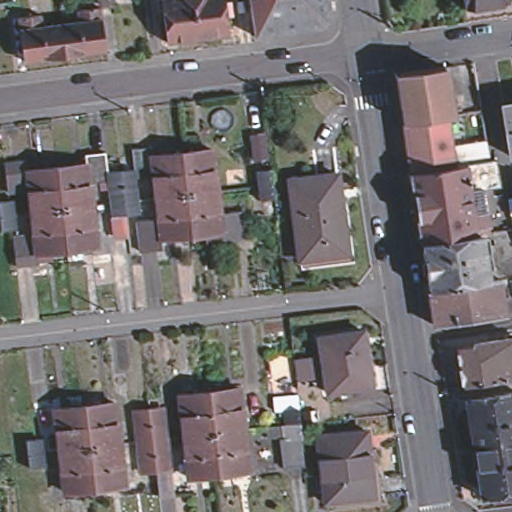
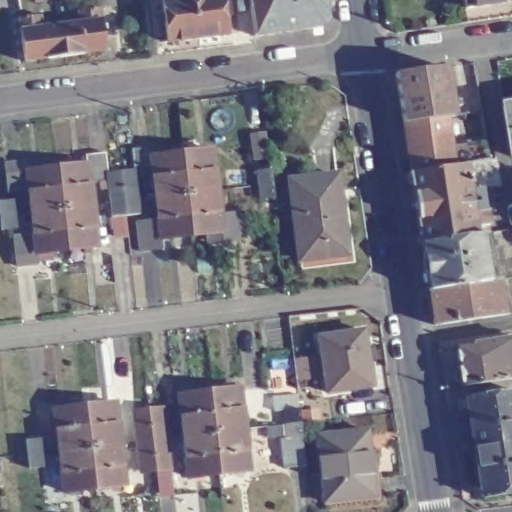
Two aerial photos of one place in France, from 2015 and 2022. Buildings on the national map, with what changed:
unchanged [(93,7),(92,0),(108,0),(108,5),(93,7)]
unchanged [(167,46),(162,0),(166,0),(223,0),(227,38),(167,46)]
unchanged [(320,32),(253,41),(247,0),(323,0),(327,25),(320,32)]
unchanged [(459,0),(512,0),(512,6),(505,7),(485,10),(485,12),(462,16),(459,0)]
unchanged [(19,69),(15,38),(13,25),(35,22),(37,35),(74,30),(73,17),(95,15),(97,27),(100,59),(19,69)]
unchanged [(452,104),(458,103),(460,109),(453,110),(455,119),(449,119),(405,125),(397,76),(446,69),(452,104)]
unchanged [(508,158),(498,108),(512,105),(512,158),(508,158)]
unchanged [(502,188),(492,190),(485,191),(490,227),(477,229),(477,237),(423,245),(412,174),(405,125),(449,119),(453,147),(488,142),(490,151),(492,161),(497,160),(502,188)]
unchanged [(110,182),(88,184),(92,211),(33,219),(30,197),(9,199),(7,172),(27,169),(28,179),(87,171),(85,162),(107,159),(109,178),(133,175),(131,155),(152,154),(153,164),(212,155),(217,195),(157,203),(155,176),(133,178),(135,191),(137,206),(138,220),(114,223),(112,209),(111,193),(110,182)]
unchanged [(257,200),(256,185),(255,172),(272,170),(273,183),(275,197),(257,200)]
unchanged [(300,262),(290,184),(337,177),(348,255),(300,262)]
unchanged [(140,258),(136,229),(160,225),(157,203),(217,195),(220,219),(242,216),(245,244),(222,247),(222,236),(162,243),(164,255),(140,258)]
unchanged [(0,234),(0,207),(8,206),(10,222),(11,236),(0,237),(0,234)]
unchanged [(15,272),(13,244),(36,241),(33,219),(92,211),(97,252),(38,259),(40,270),(15,272)]
unchanged [(430,290),(423,245),(477,237),(483,236),(490,282),(490,284),(430,292),(430,290)]
unchanged [(430,292),(490,284),(490,282),(500,280),(506,316),(436,327),(430,292)]
unchanged [(325,394),(317,339),(362,332),(370,387),(325,394)]
unchanged [(497,342),(512,340),(512,380),(503,382),(463,388),(463,386),(457,383),(455,374),(458,369),(460,369),(457,348),(497,342)]
unchanged [(280,438),(285,438),(284,423),(281,390),(297,387),(302,421),(302,427),(303,437),(307,468),(282,471),(280,438)]
unchanged [(475,449),(467,400),(512,393),(512,444),(475,449)]
unchanged [(184,441),(180,400),(239,394),(243,433),(184,441)]
unchanged [(171,471),(173,496),(159,498),(157,472),(138,474),(130,410),(164,406),(171,471)]
unchanged [(60,455),(55,415),(114,407),(119,448),(60,455)]
unchanged [(323,502),(315,438),(365,432),(373,497),(323,502)]
unchanged [(243,433),(248,474),(188,481),(184,441),(243,433)]
unchanged [(28,469),(27,454),(25,440),(35,440),(37,453),(38,468),(28,469)]
unchanged [(484,499),(475,449),(512,444),(512,495),(484,499)]
unchanged [(123,488),(64,496),(60,455),(119,448),(123,488)]

